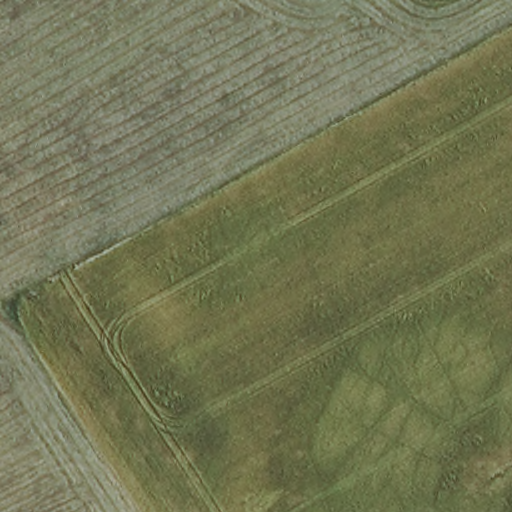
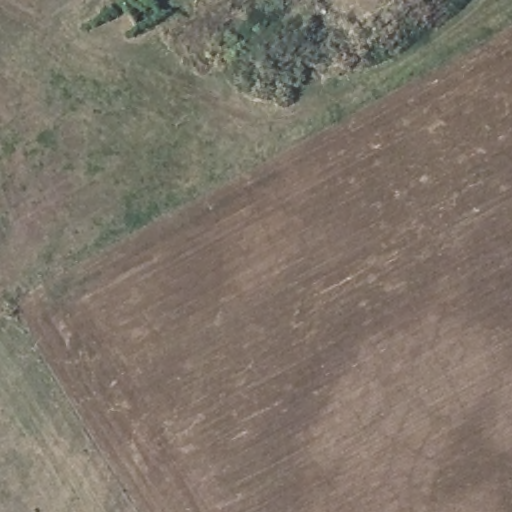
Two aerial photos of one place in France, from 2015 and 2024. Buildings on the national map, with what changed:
[]

